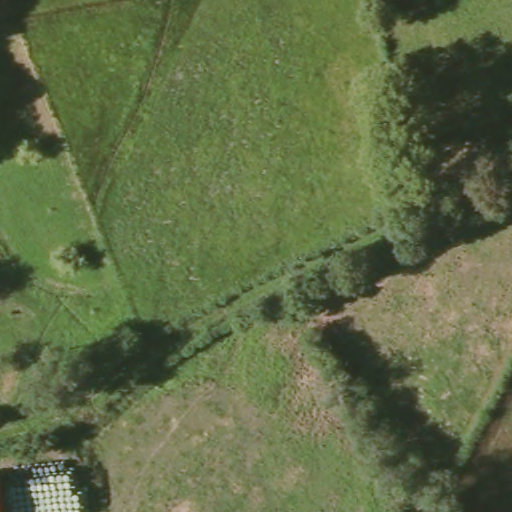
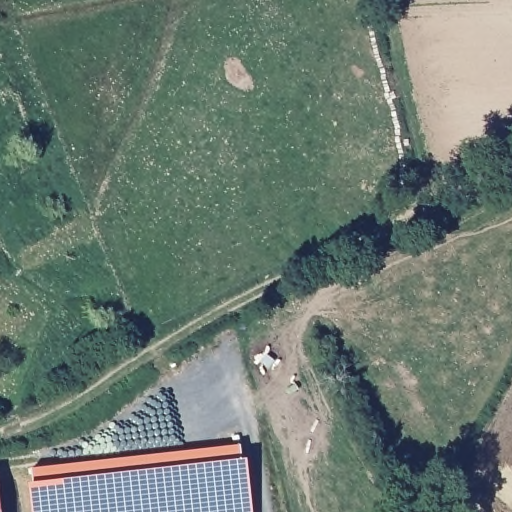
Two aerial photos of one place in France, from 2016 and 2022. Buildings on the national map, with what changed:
new [(30,470),(240,447),(248,512),(35,512),(30,470)]
unchanged [(3,512),(0,512),(0,486),(3,512)]

